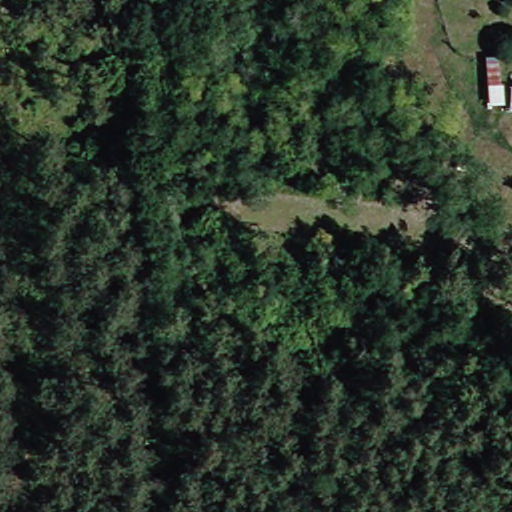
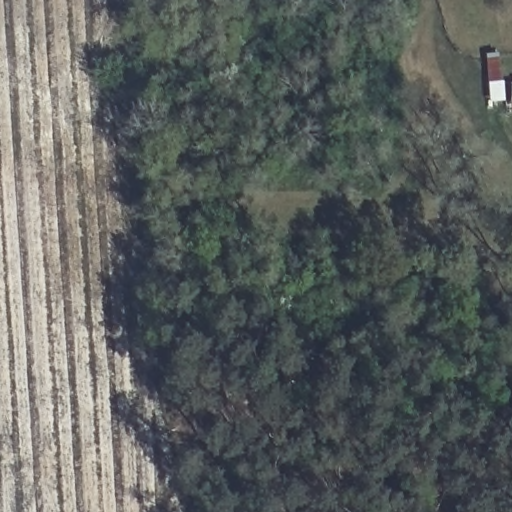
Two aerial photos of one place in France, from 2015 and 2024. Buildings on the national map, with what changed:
unchanged [(491,51),(499,50),(503,78),(492,80),(491,51)]

